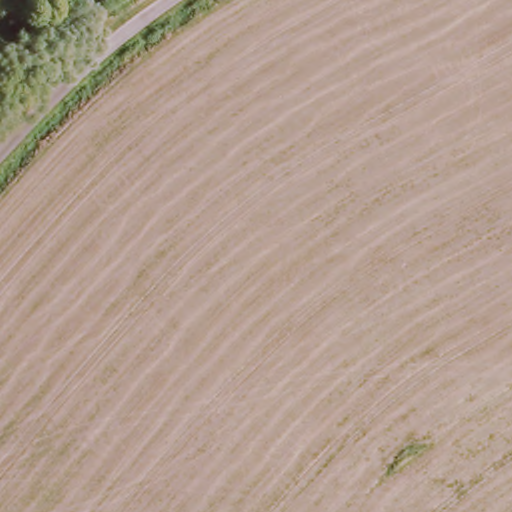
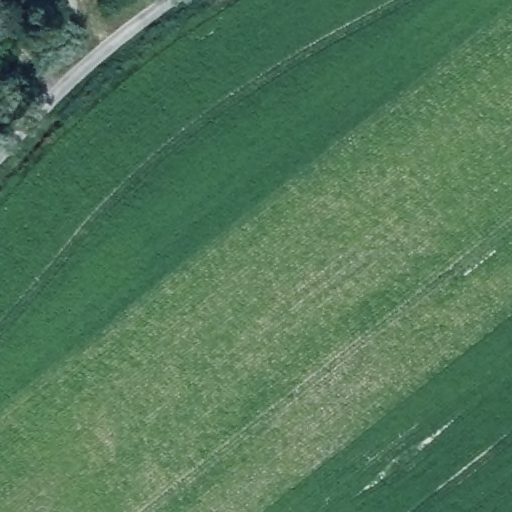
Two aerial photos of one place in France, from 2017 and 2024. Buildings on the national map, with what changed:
unchanged [(0,77),(0,52),(12,65),(0,77)]

